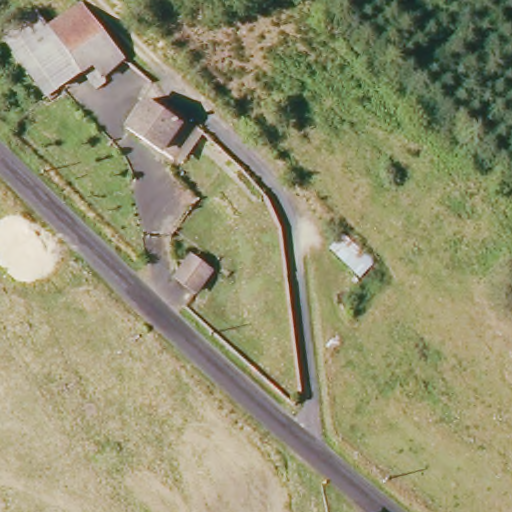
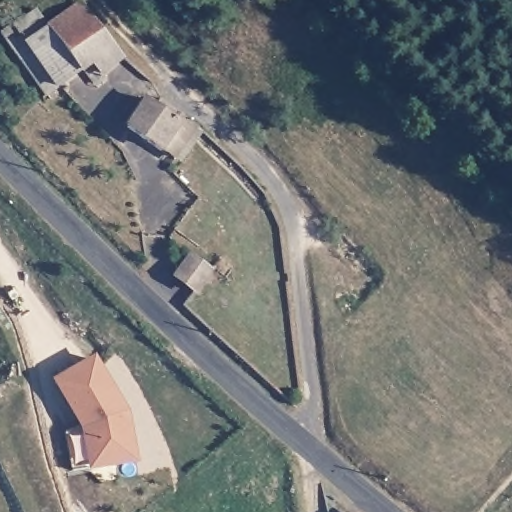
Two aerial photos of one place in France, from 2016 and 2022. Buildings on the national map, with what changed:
unchanged [(97,91),(79,69),(57,85),(48,94),(42,99),(0,38),(0,37),(6,34),(32,15),(42,31),(81,1),(122,55),(102,74),(108,81),(97,91)]
unchanged [(161,160),(116,126),(137,98),(144,105),(150,98),(188,125),(161,160)]
unchanged [(174,276),(176,273),(192,255),(211,270),(192,292),(174,276)]
new [(82,431),(53,381),(96,355),(130,412),(139,463),(90,471),(82,431)]

